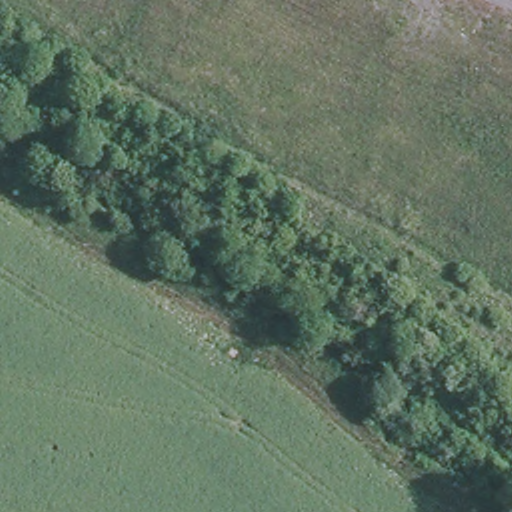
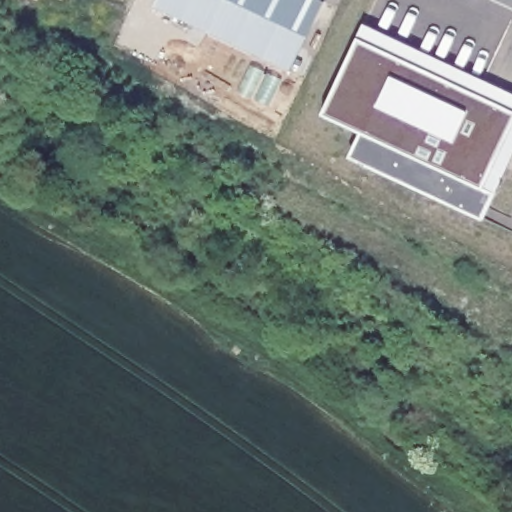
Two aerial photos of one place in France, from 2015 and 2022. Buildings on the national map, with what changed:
new [(320,115),(356,40),(365,25),(512,92),(512,154),(495,193),(481,219),(348,159),(360,133),(320,115)]

